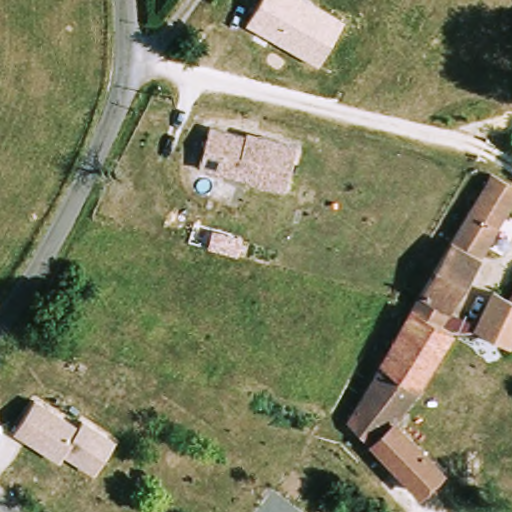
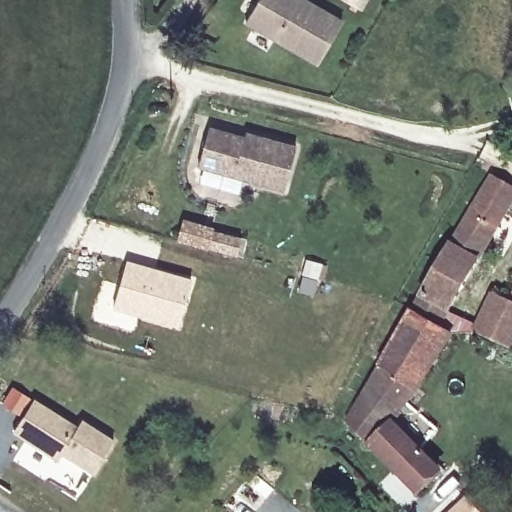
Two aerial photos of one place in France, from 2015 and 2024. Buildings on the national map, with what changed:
unchanged [(318,65),(245,23),(258,0),(311,0),(344,19),(318,65)]
unchanged [(345,0),(368,0),(363,9),(345,0)]
unchanged [(210,126),(245,136),(246,130),(298,144),(286,191),(200,166),(210,126)]
unchanged [(404,319),(487,189),(512,205),(512,208),(432,337),(404,319)]
new [(182,218),(247,239),(241,259),(176,241),(182,218)]
new [(125,259),(192,277),(178,329),(111,309),(125,259)]
unchanged [(512,297),(512,311),(506,307),(512,297)]
unchanged [(477,325),(493,298),(506,307),(512,311),(512,340),(509,345),(477,325)]
unchanged [(385,428),(432,460),(414,487),(349,437),(366,414),(350,403),(404,319),(432,337),(439,341),(385,428)]
unchanged [(96,470),(65,452),(58,465),(11,436),(35,397),(79,424),(83,418),(116,439),(96,470)]
new [(465,499),(473,508),(476,505),(483,512),(452,512),(465,499)]

